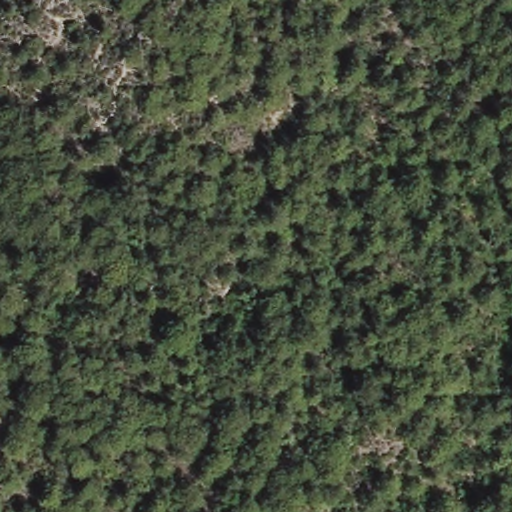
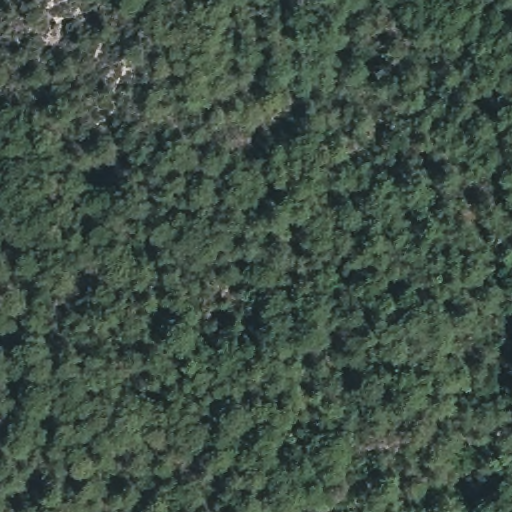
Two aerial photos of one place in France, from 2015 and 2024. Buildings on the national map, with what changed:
[]

